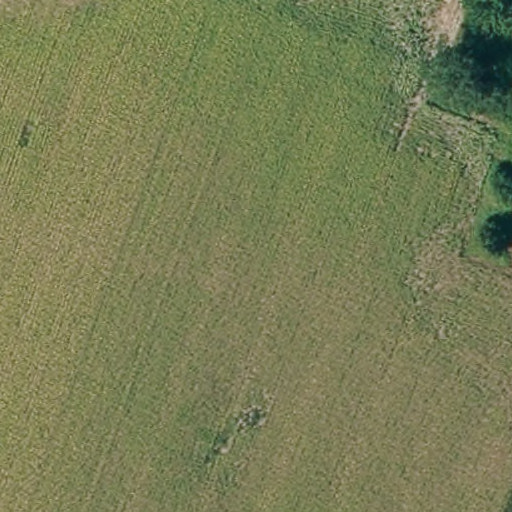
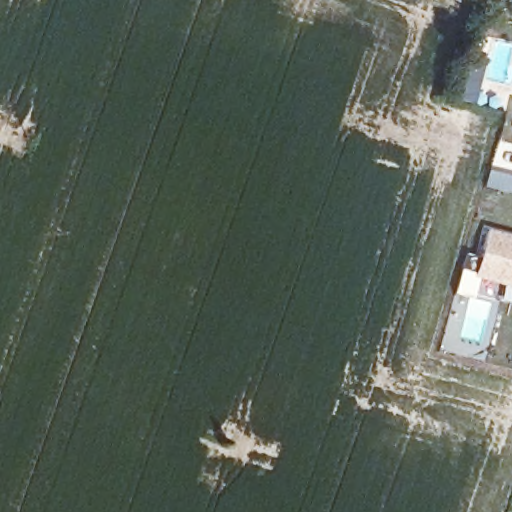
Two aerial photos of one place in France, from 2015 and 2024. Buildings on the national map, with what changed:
new [(489,170),(502,174),(502,177),(504,178),(505,174),(512,175),(512,191),(486,185),(489,170)]
new [(488,230),(512,237),(512,285),(474,274),(488,230)]

